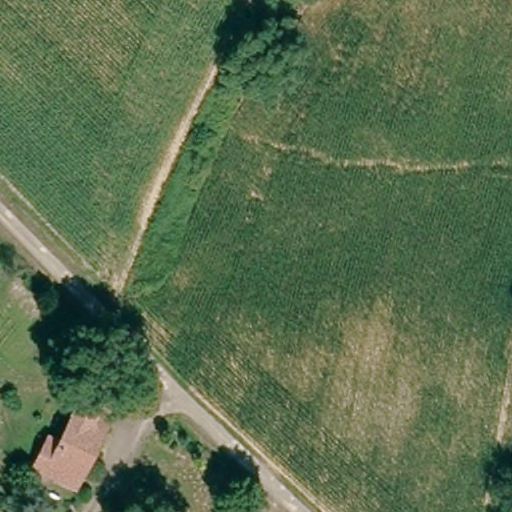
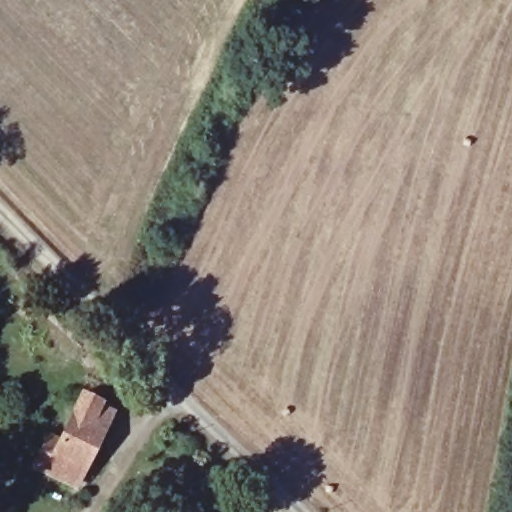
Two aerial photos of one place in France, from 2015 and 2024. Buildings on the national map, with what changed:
unchanged [(106,391),(119,398),(109,418),(90,456),(88,457),(80,474),(37,453),(52,422),(62,427),(68,415),(85,379),(106,391)]
unchanged [(0,511),(2,512),(0,512),(0,511)]

